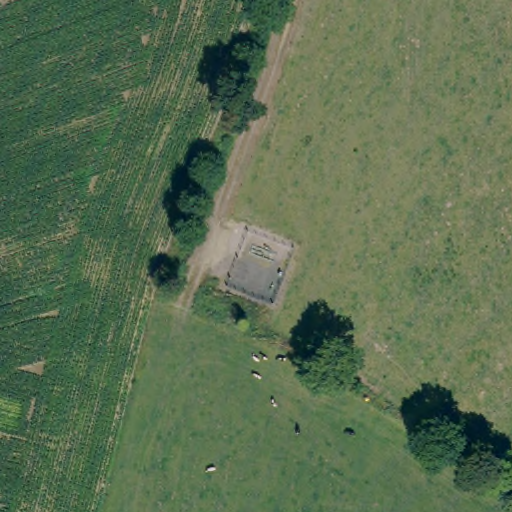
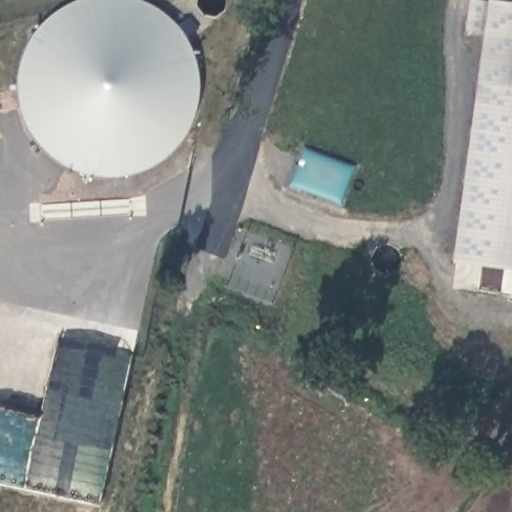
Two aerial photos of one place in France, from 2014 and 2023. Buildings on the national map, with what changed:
new [(128,1),(146,6),(162,15),(176,28),(187,44),(195,61),(200,79),(200,98),(195,116),(188,134),(176,149),(162,162),(146,171),(128,177),(110,179),(90,177),(72,171),(56,162),(42,149),(31,134),(24,117),(20,99),(20,80),(24,61),(31,44),(42,29),(56,16),(72,6),(90,0),(95,0),(120,0),(128,1)]
new [(486,34),(466,31),(470,0),(474,0),(490,2),(490,0),(512,3),(512,271),(453,263),(486,34)]

